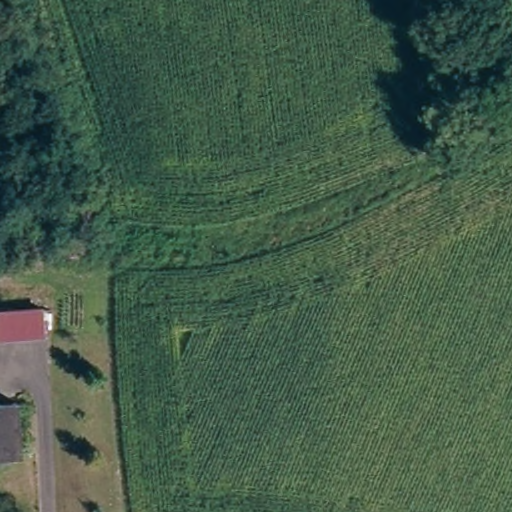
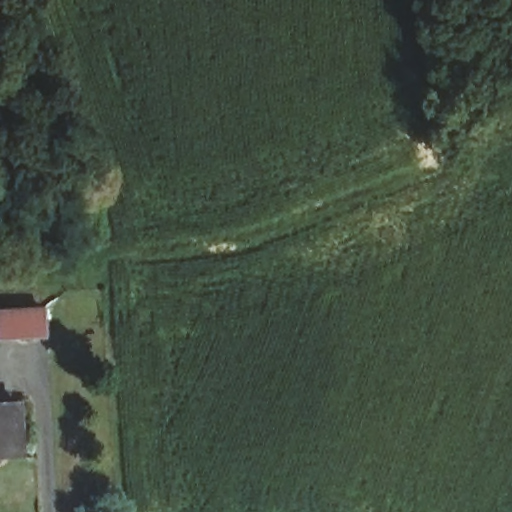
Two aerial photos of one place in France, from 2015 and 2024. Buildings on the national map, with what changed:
unchanged [(45,344),(0,346),(0,320),(43,318),(45,344)]
unchanged [(0,464),(0,411),(20,411),(21,455),(21,463),(0,464)]

